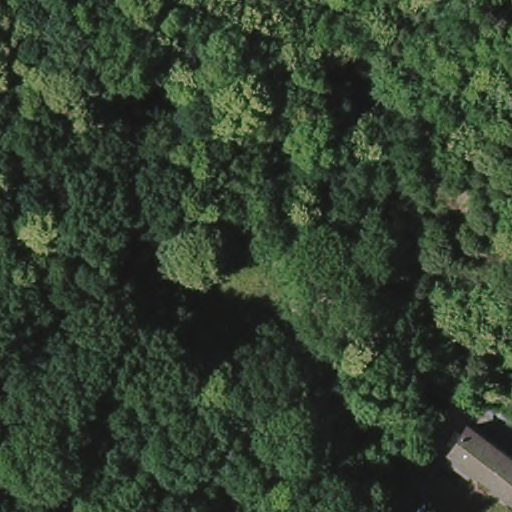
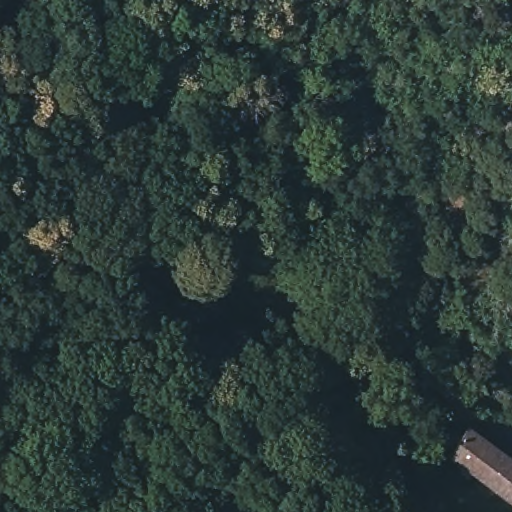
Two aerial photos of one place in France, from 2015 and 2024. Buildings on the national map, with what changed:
unchanged [(479,397),(468,415),(454,405),(437,392),(433,390),(447,370),(479,397)]
unchanged [(466,465),(463,468),(439,450),(458,419),(485,436),(466,465)]
unchanged [(482,471),(478,474),(466,465),(485,436),(512,455),(512,492),(482,471)]

